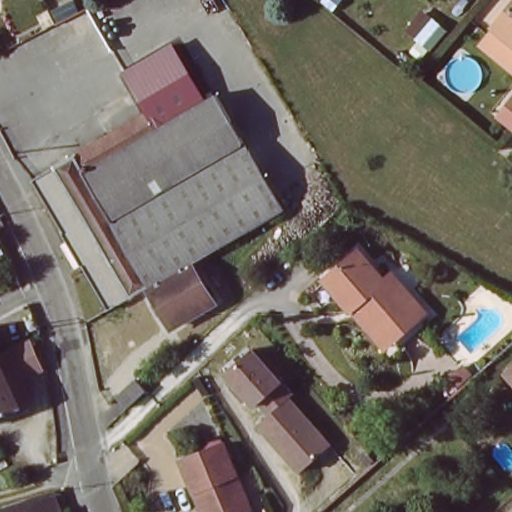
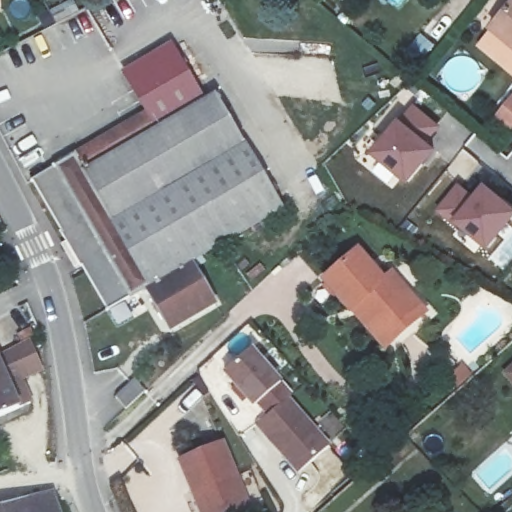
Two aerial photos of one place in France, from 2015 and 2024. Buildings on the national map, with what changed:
unchanged [(512,11),(512,62),(486,42),(512,11)]
unchanged [(135,83),(185,52),(215,100),(165,131),(135,83)]
unchanged [(111,314),(33,185),(151,114),(162,132),(165,131),(215,100),(243,148),(273,202),(286,194),(288,193),(296,204),(280,213),(195,264),(146,293),(111,314)]
new [(441,127),(429,141),(438,149),(409,184),(371,153),(398,116),(402,119),(413,104),(441,127)]
demolished [(340,202),(330,212),(307,192),(318,180),(340,202)]
new [(485,182),(512,204),(512,220),(488,249),(458,224),(455,227),(436,211),(458,184),(473,198),(485,182)]
unchanged [(347,312),(319,282),(353,250),(379,279),(386,272),(423,312),(392,342),(383,351),(347,312)]
unchanged [(195,264),(220,305),(172,334),(146,293),(195,264)]
unchanged [(37,347),(51,377),(34,384),(38,396),(20,404),(3,364),(37,347)]
unchanged [(281,382),(292,395),(290,398),(331,444),(300,473),(258,426),(265,417),(258,406),(255,408),(227,374),(253,351),(281,382)]
unchanged [(3,364),(20,404),(0,413),(0,359),(3,364)]
unchanged [(512,367),(512,384),(504,374),(512,367)]
unchanged [(126,416),(115,406),(135,386),(146,396),(126,416)]
unchanged [(195,497),(181,468),(225,447),(255,512),(201,512),(195,497)]
unchanged [(54,512),(0,512),(0,509),(49,496),(50,497),(54,512)]

